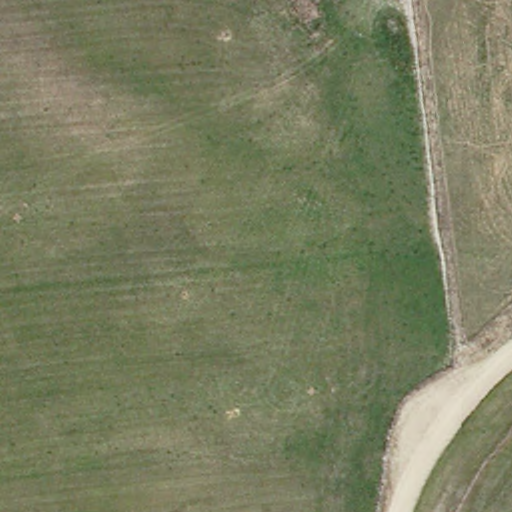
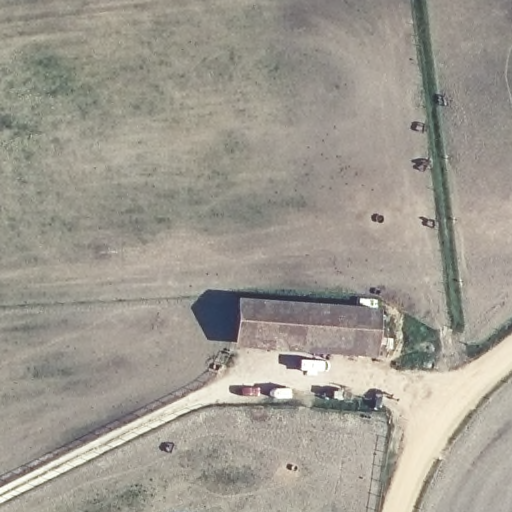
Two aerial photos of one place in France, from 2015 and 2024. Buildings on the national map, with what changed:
new [(243,302),(384,311),(381,355),(240,346),(243,302)]

